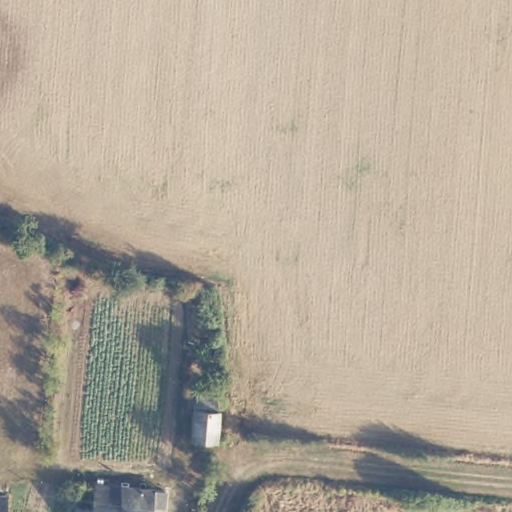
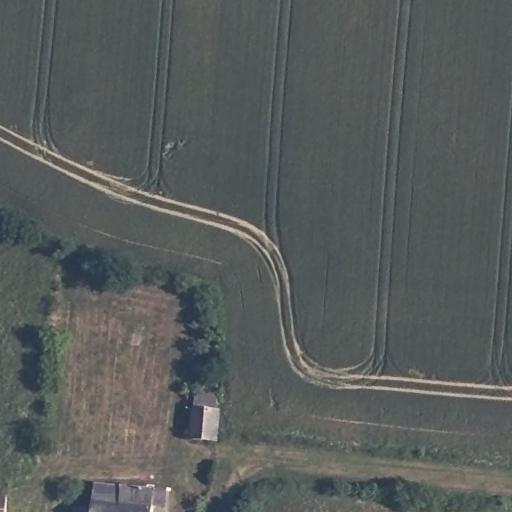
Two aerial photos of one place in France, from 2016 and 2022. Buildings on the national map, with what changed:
unchanged [(187,438),(191,408),(195,408),(196,400),(198,396),(200,394),(204,394),(207,394),(210,395),(211,397),(211,399),(211,403),(217,403),(211,441),(187,438)]
unchanged [(167,501),(166,512),(77,512),(79,505),(92,507),(96,477),(107,478),(160,483),(157,500),(167,501)]
unchanged [(5,512),(0,512),(0,489),(7,489),(5,512)]

